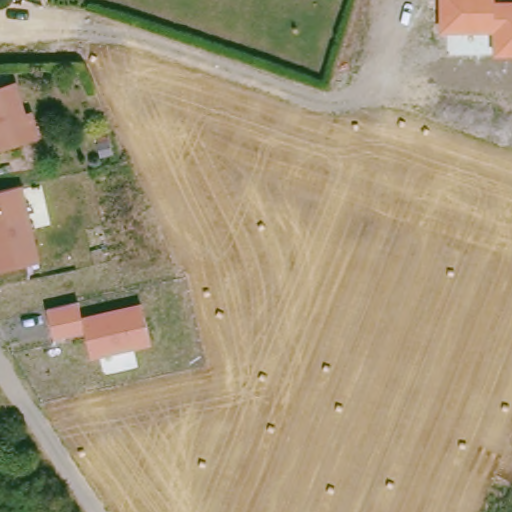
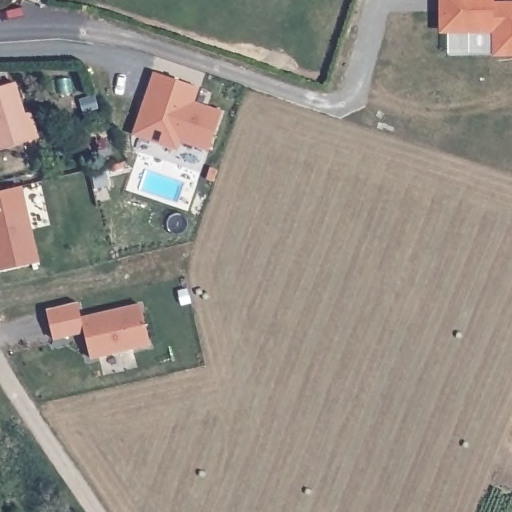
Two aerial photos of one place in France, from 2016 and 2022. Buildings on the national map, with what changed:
unchanged [(512,2),(512,54),(492,55),(492,33),(439,34),(439,0),(494,0),(494,2),(512,2)]
new [(133,133),(155,72),(200,88),(195,102),(222,111),(210,151),(181,142),(179,150),(133,133)]
unchanged [(41,135),(0,147),(0,83),(12,80),(25,112),(32,108),(41,135)]
unchanged [(40,261),(0,271),(0,192),(22,186),(40,261)]
unchanged [(79,301),(82,317),(141,302),(152,346),(91,359),(84,333),(54,339),(47,308),(79,301)]

